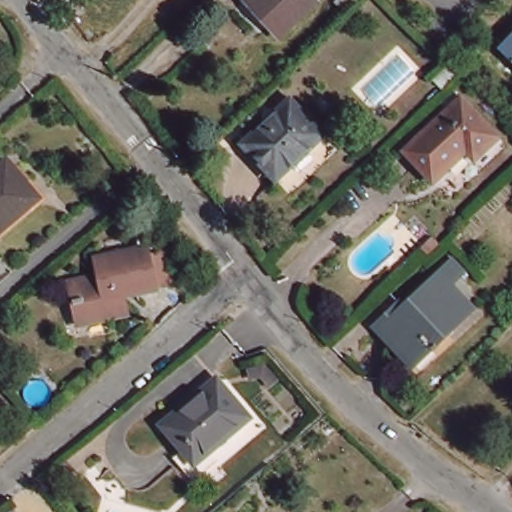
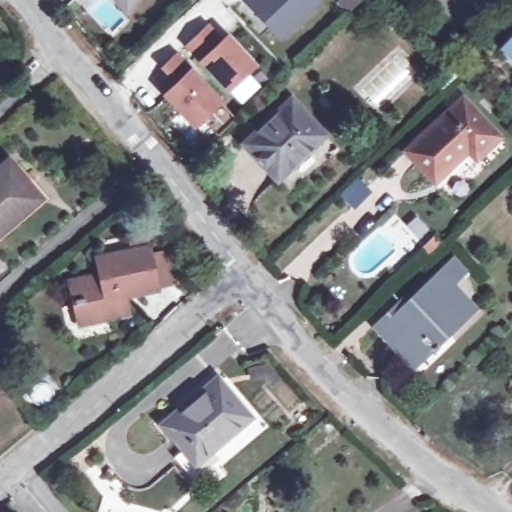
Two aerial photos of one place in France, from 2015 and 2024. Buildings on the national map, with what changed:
unchanged [(136,0),(126,10),(116,0),(136,0)]
unchanged [(283,40),(273,29),(249,3),(252,0),(316,0),(321,4),(283,40)]
new [(207,25),(219,40),(227,33),(255,64),(227,92),(197,61),(184,46),(207,25)]
unchanged [(512,40),(512,65),(500,53),(512,40)]
new [(188,69),(190,66),(221,100),(193,128),(161,95),(171,84),(160,68),(175,53),(188,69)]
unchanged [(443,86),(436,78),(451,64),(458,72),(443,86)]
unchanged [(461,98),(497,136),(476,156),(467,148),(434,179),(407,150),(461,98)]
unchanged [(282,184),(248,148),(296,103),(330,139),(282,184)]
unchanged [(8,159),(29,183),(40,197),(31,204),(0,231),(0,166),(8,159)]
unchanged [(81,309),(76,286),(106,279),(103,263),(154,253),(162,292),(127,300),(128,306),(131,305),(134,321),(116,325),(115,322),(94,326),(84,328),(81,309)]
unchanged [(408,363),(380,334),(376,330),(400,306),(404,311),(439,277),(452,264),(464,277),(451,289),(474,313),(432,353),(415,370),(408,363)]
unchanged [(251,417),(195,464),(161,423),(217,376),(251,417)]
unchanged [(74,469),(59,481),(51,472),(66,460),(74,469)]
unchanged [(217,478),(212,472),(221,464),(226,470),(217,478)]

